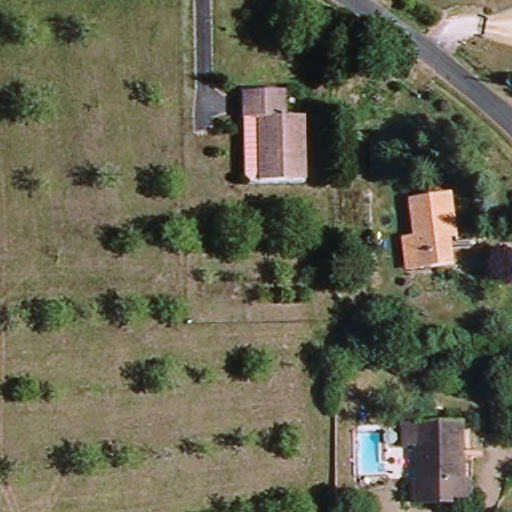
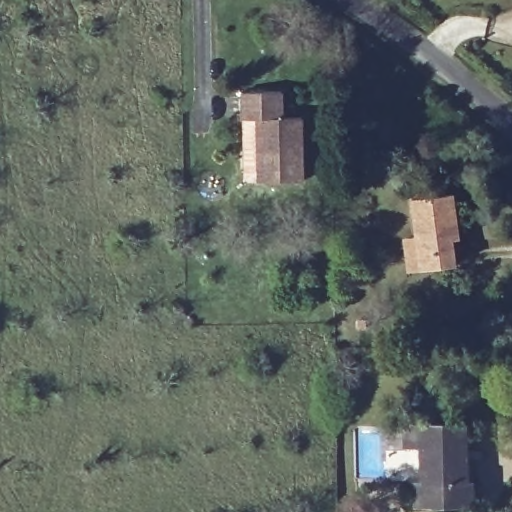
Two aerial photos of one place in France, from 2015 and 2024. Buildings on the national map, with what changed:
unchanged [(300,181),(241,181),(241,93),(280,94),(280,120),(300,120),(300,181)]
unchanged [(446,274),(414,277),(409,204),(450,201),(454,256),(445,257),(446,274)]
unchanged [(405,508),(405,493),(419,490),(420,431),(462,431),(462,487),(467,494),(467,505),(405,508)]

